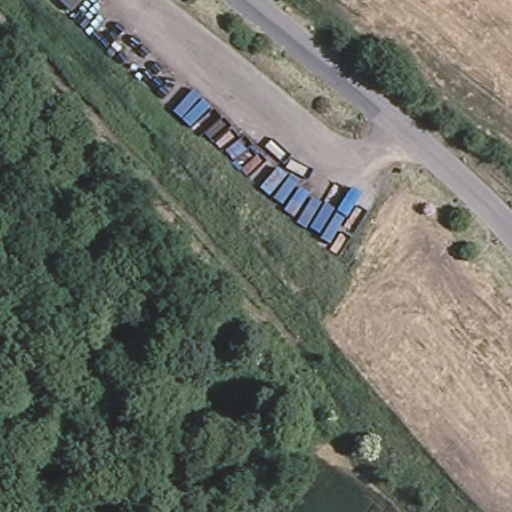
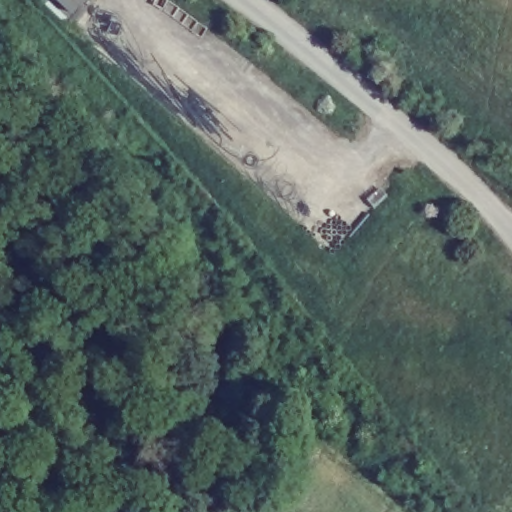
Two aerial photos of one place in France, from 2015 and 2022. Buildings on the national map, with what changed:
unchanged [(56,0),(84,0),(66,19),(51,5),(56,0)]

